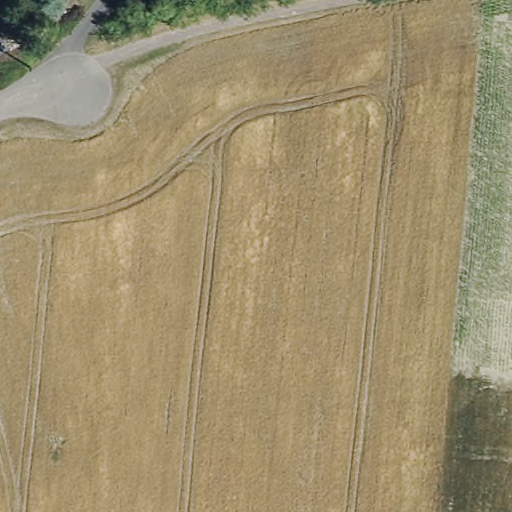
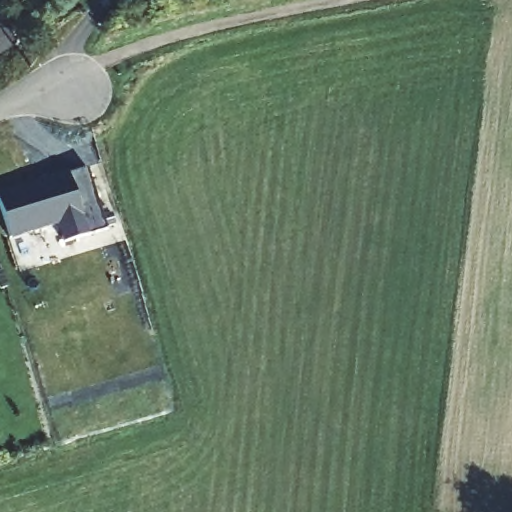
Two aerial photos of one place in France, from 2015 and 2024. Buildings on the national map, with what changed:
new [(55,227),(10,241),(0,208),(0,195),(88,169),(106,231),(61,245),(55,227)]

